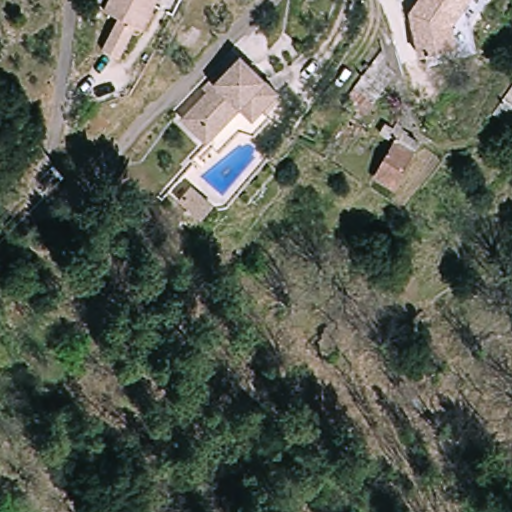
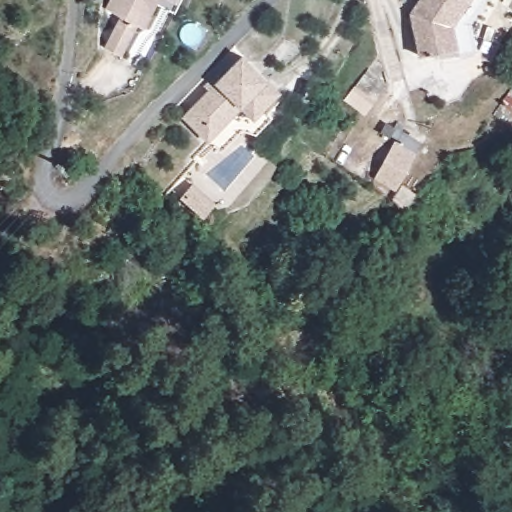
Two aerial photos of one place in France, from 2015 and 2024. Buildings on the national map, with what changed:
unchanged [(135,32),(128,26),(106,51),(89,33),(110,9),(101,0),(164,0),(135,32)]
unchanged [(471,25),(474,45),(461,49),(424,60),(411,17),(421,0),(486,0),(471,25)]
unchanged [(208,89),(204,82),(219,66),(225,71),(241,53),(276,88),(260,105),(270,116),(252,135),(242,125),(221,148),(187,112),(208,89)]
unchanged [(512,90),(512,124),(496,114),(512,90)]
unchanged [(417,149),(399,179),(378,166),(396,136),(417,149)]
unchanged [(188,184),(209,208),(196,223),(173,199),(188,184)]

